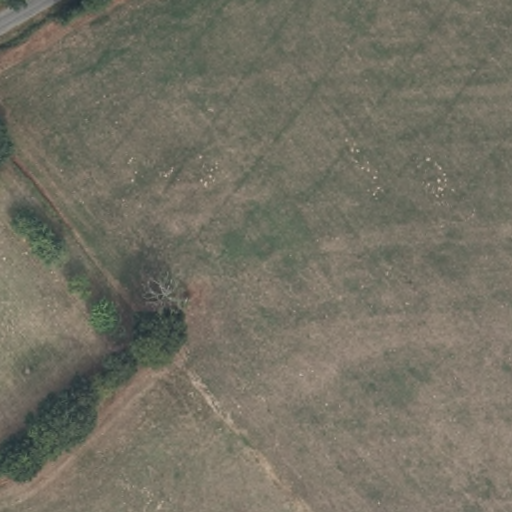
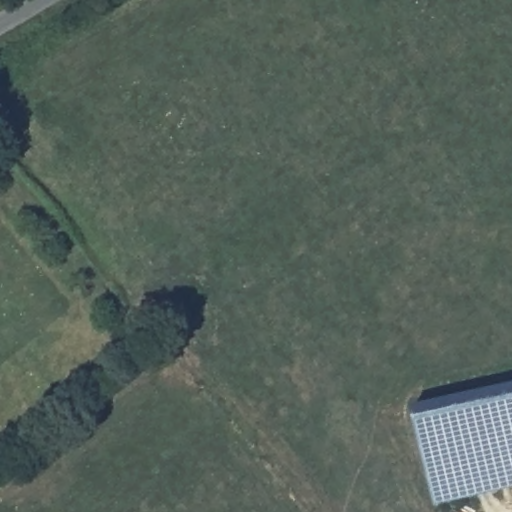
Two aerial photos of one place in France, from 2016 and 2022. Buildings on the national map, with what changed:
new [(412,405),(512,383),(512,488),(435,505),(412,405)]

